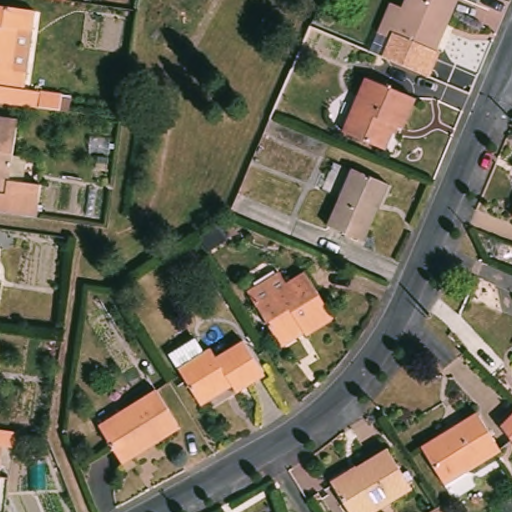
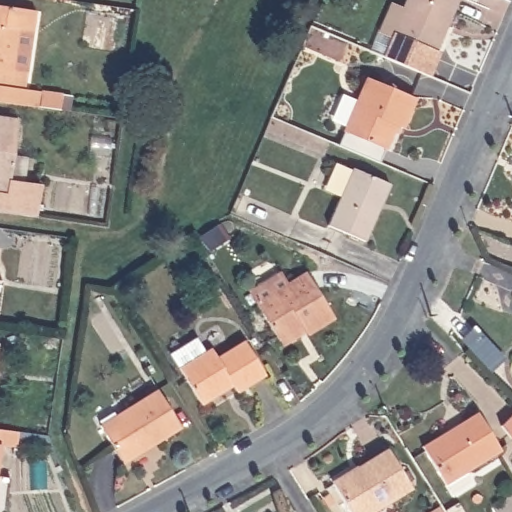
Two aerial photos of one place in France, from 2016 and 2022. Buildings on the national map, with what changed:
unchanged [(35,23),(22,21),(17,61),(29,63),(26,81),(41,84),(39,100),(30,99),(24,98),(19,96),(0,94),(0,0),(23,0),(37,2),(35,23)]
unchanged [(368,26),(380,0),(391,0),(393,1),(393,0),(445,0),(426,45),(414,40),(412,45),(403,63),(374,50),(382,32),(379,31),(368,26)]
unchanged [(372,76),(419,96),(406,127),(398,124),(388,148),(348,131),(372,76)]
unchanged [(19,116),(10,178),(40,183),(37,213),(0,208),(0,113),(19,116)]
unchanged [(352,166),(389,183),(365,241),(326,225),(352,166)]
unchanged [(201,230),(209,242),(205,244),(190,254),(182,241),(197,232),(201,230)]
unchanged [(284,341),(253,291),(282,273),(289,285),(310,272),(337,315),(309,334),(287,347),(284,341)]
unchanged [(177,368),(168,354),(194,338),(202,352),(210,347),(217,357),(243,340),(264,375),(236,392),(231,386),(199,406),(176,369),(177,368)]
unchanged [(181,429),(126,463),(104,430),(101,425),(116,414),(156,389),(181,429)]
unchanged [(512,440),(501,426),(512,416),(512,440)]
unchanged [(478,418),(501,456),(445,490),(422,451),(478,418)]
unchanged [(18,432),(15,448),(0,446),(0,429),(18,432)]
unchanged [(391,451),(413,489),(374,512),(354,512),(336,482),(391,451)]
unchanged [(11,476),(5,512),(1,512),(0,512),(0,474),(11,476)]

